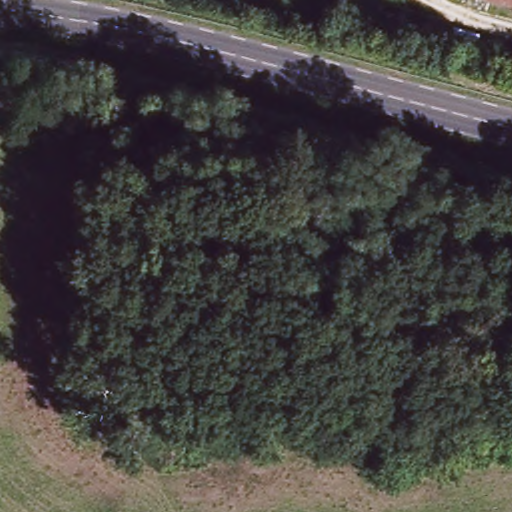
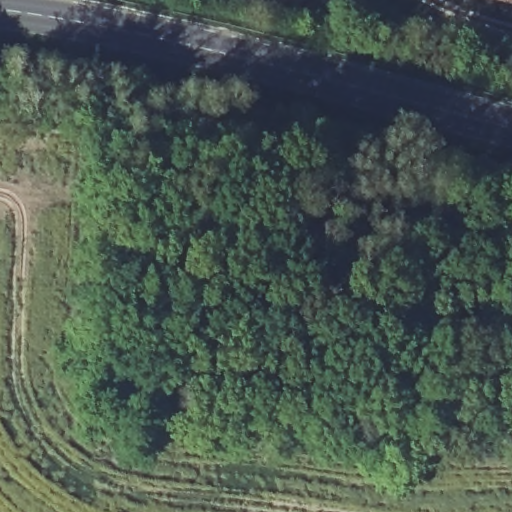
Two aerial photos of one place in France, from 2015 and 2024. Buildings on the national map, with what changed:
unchanged [(512,11),(459,0),(512,0),(512,11)]

